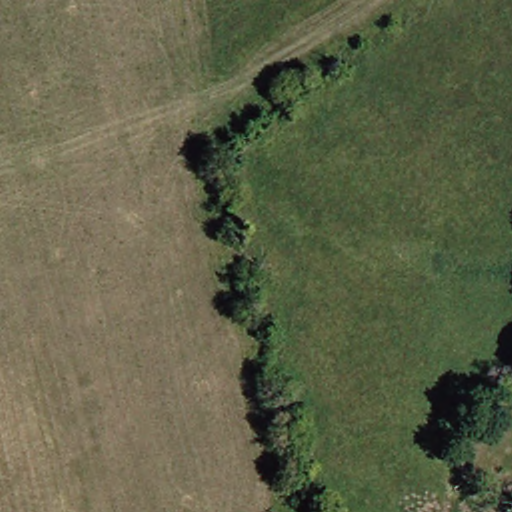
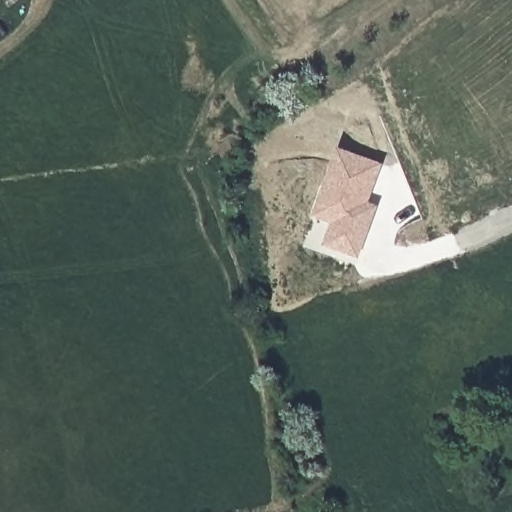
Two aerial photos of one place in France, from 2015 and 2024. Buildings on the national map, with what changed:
new [(370,201),(380,205),(360,258),(323,244),(332,222),(315,215),(339,146),(385,163),(370,201)]

